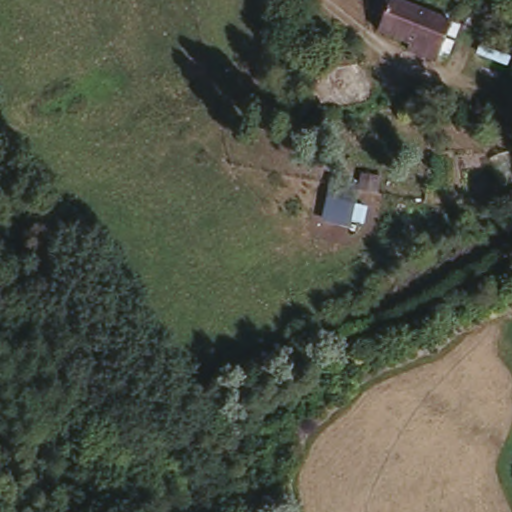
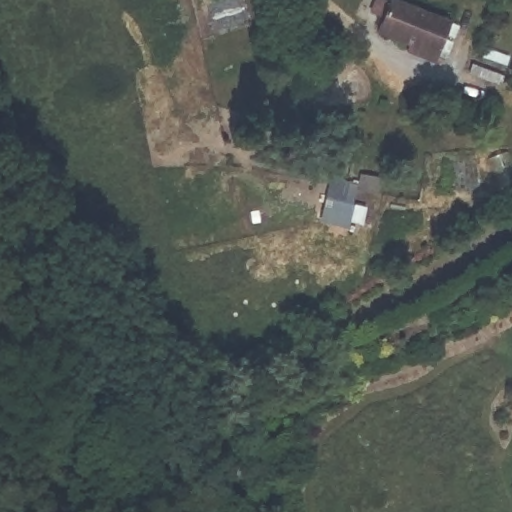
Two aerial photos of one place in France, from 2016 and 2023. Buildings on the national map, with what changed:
unchanged [(419,0),(460,23),(442,61),(381,30),(384,21),(372,15),(382,0),(419,0)]
unchanged [(469,54),(476,40),(512,51),(512,69),(469,54)]
unchanged [(357,203),(352,230),(322,221),(331,196),(357,203)]

